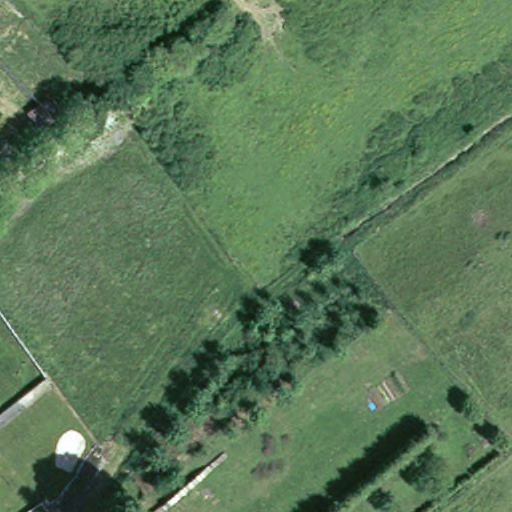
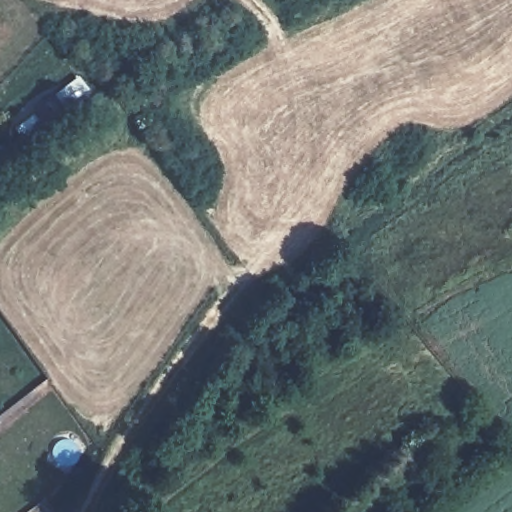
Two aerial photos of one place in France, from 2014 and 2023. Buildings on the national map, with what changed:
[]

